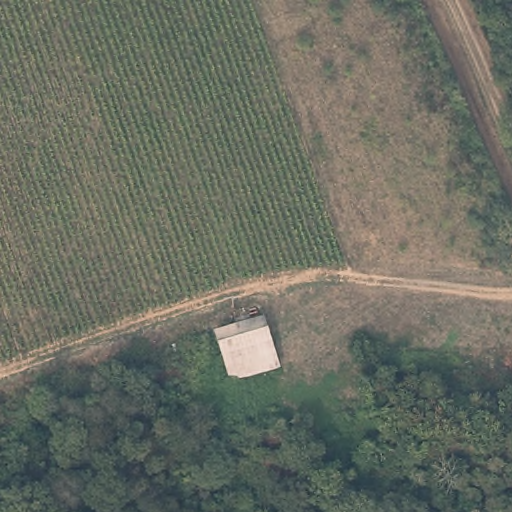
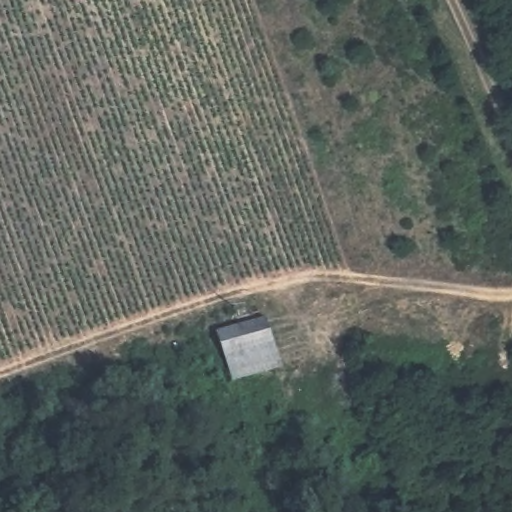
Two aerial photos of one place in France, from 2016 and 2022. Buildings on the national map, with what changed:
unchanged [(265,317),(279,367),(229,382),(214,332),(265,317)]

